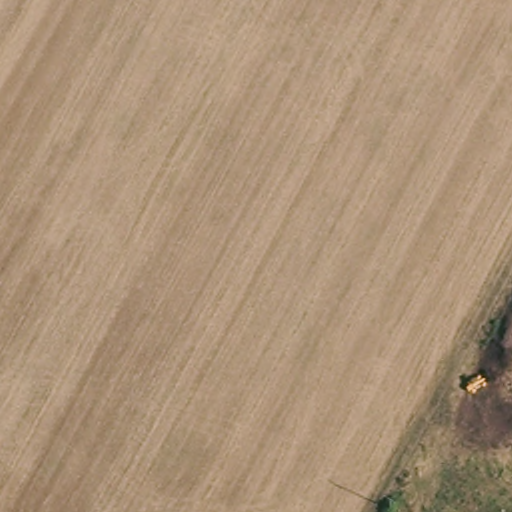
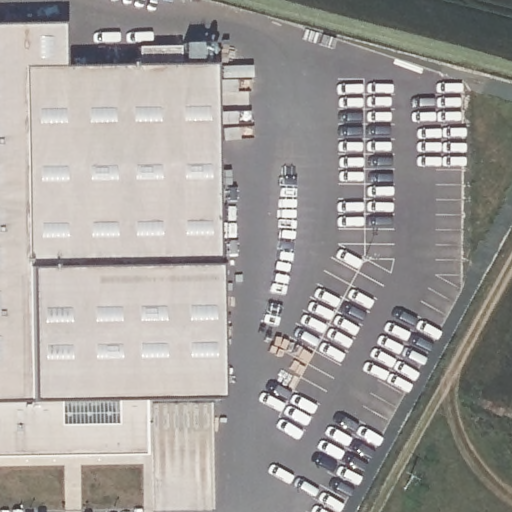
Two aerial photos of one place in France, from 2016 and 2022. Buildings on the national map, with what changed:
new [(0,458),(0,25),(59,24),(60,66),(213,64),(215,266),(217,400),(141,401),(142,456),(0,458)]

